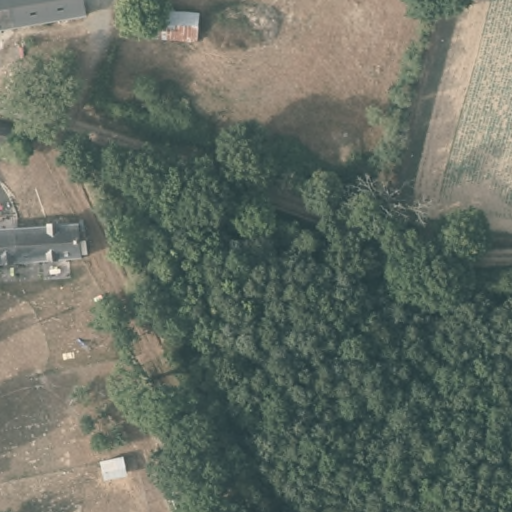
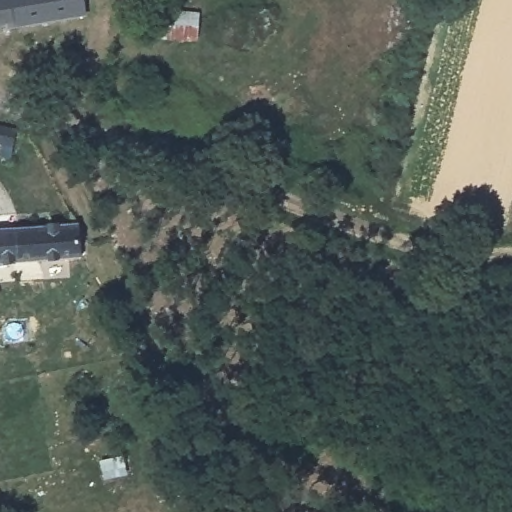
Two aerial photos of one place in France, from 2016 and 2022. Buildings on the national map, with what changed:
unchanged [(89,9),(0,28),(0,0),(86,0),(89,9)]
unchanged [(193,16),(193,40),(144,39),(144,15),(149,15),(193,16)]
unchanged [(7,142),(0,142),(0,127),(9,128),(7,142)]
unchanged [(86,257),(0,261),(0,229),(85,226),(86,257)]

